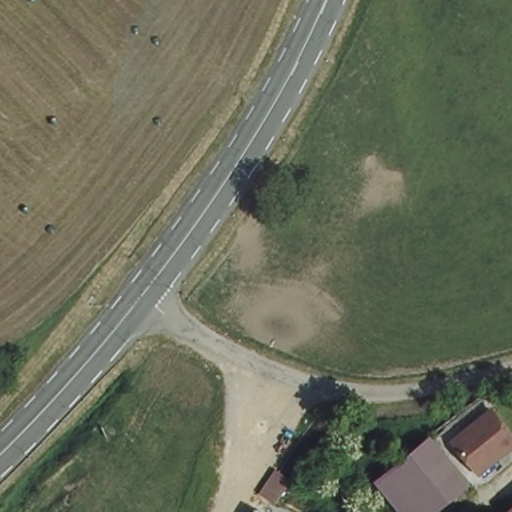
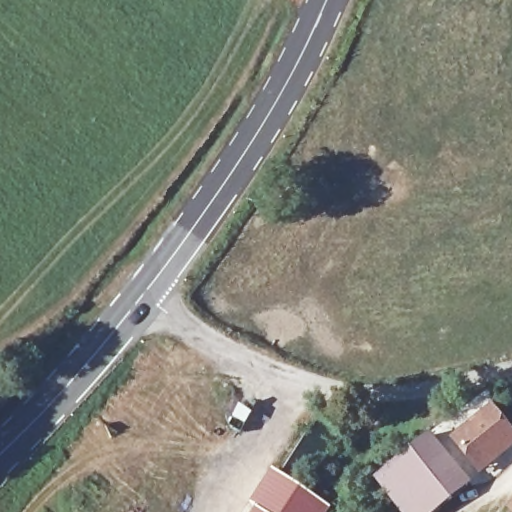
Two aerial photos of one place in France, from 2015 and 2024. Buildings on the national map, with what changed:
unchanged [(512,432),(512,443),(479,470),(455,440),(493,409),(512,432)]
unchanged [(435,512),(398,512),(382,493),(431,448),(464,486),(435,512)]
demolished [(290,476),(274,505),(260,498),(275,467),(290,476)]
new [(330,510),(328,512),(258,512),(255,510),(247,505),(270,472),(330,510)]
unchanged [(253,512),(255,510),(258,512),(253,512)]
unchanged [(512,512),(511,512),(512,511),(512,512)]

